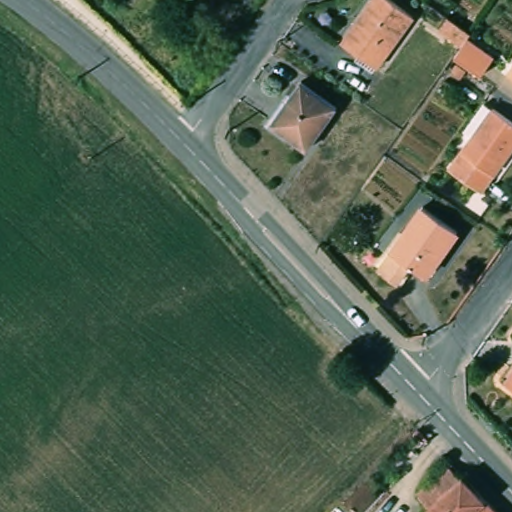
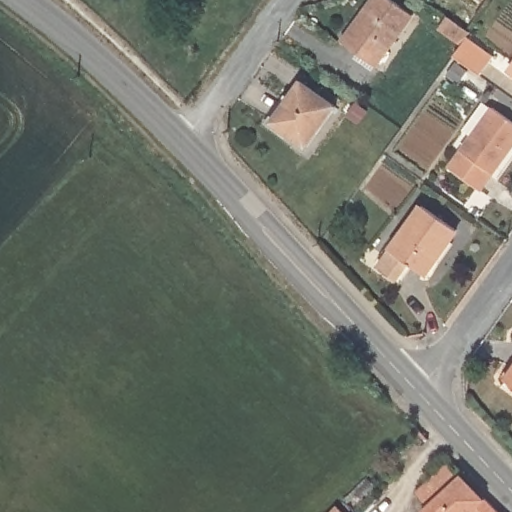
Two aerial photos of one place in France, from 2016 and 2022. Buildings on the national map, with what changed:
unchanged [(386,0),(408,16),(373,64),(342,42),(372,0),(386,0)]
unchanged [(458,47),(435,30),(445,16),(469,34),(468,36),(494,54),(481,72),(454,52),(458,47)]
unchanged [(302,77),(337,102),(302,149),(268,127),(302,77)]
unchanged [(482,111),(491,116),(512,132),(512,148),(481,192),(450,172),(471,144),(463,137),(482,111)]
unchanged [(427,206),(461,229),(425,275),(407,263),(395,281),(379,271),(427,206)]
unchanged [(512,387),(504,382),(512,371),(512,387)]
unchanged [(414,504),(420,498),(408,484),(441,460),(454,475),(458,471),(462,475),(477,491),(478,492),(483,497),(484,498),(497,512),(420,512),(414,504)]

